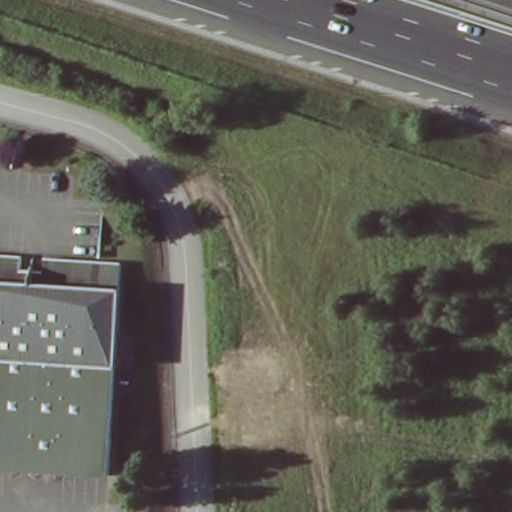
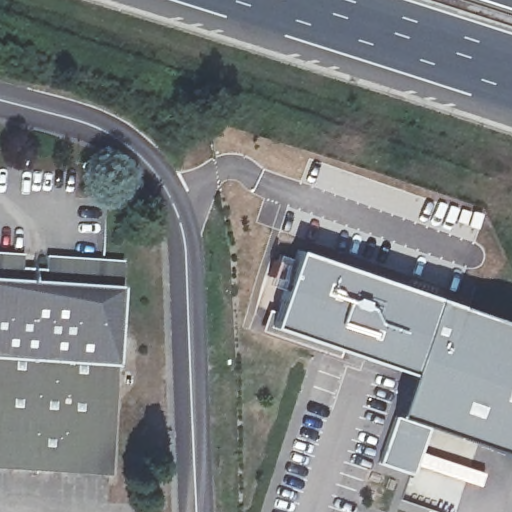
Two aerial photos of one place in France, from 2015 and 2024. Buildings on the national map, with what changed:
unchanged [(0,467),(0,253),(24,255),(23,269),(46,270),(47,256),(100,259),(124,261),(111,474),(0,467)]
new [(396,417),(411,374),(285,331),(311,254),(512,323),(512,457),(396,417)]
new [(413,475),(380,464),(396,417),(429,428),(413,475)]

